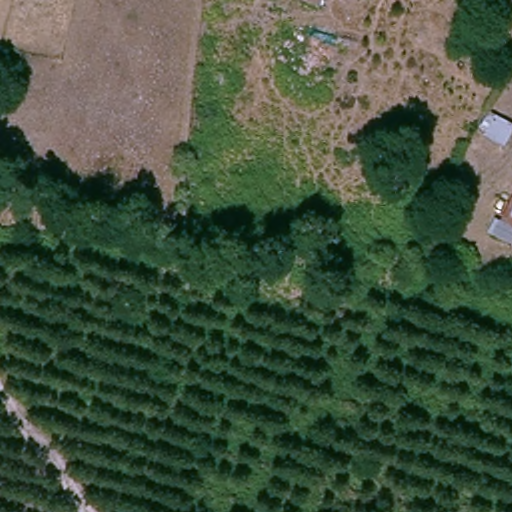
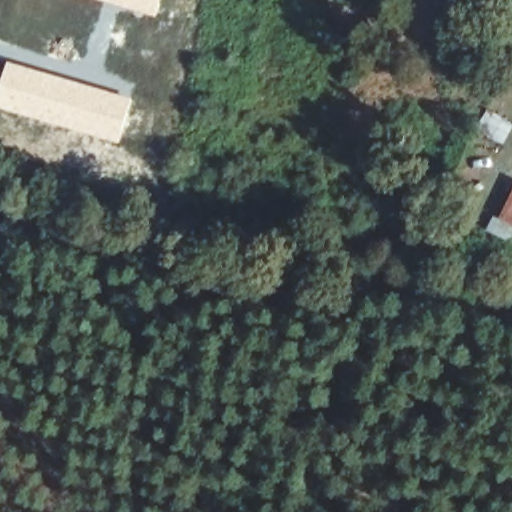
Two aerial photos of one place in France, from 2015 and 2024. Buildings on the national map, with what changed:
new [(156,17),(97,0),(162,0),(156,17)]
unchanged [(323,1),(319,0),(324,0),(323,1)]
new [(6,60),(131,97),(119,142),(0,108),(0,81),(6,60)]
unchanged [(512,228),(501,223),(512,196),(512,228)]

